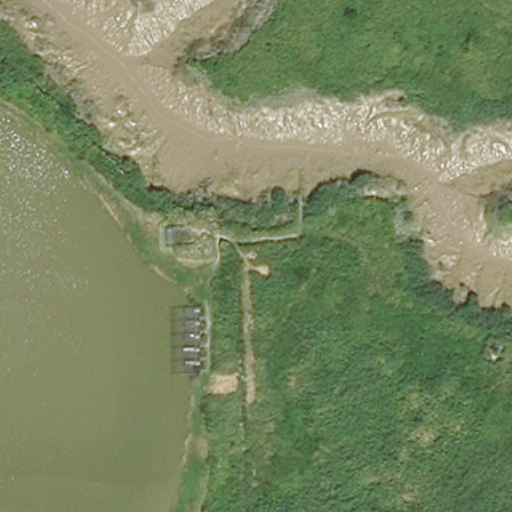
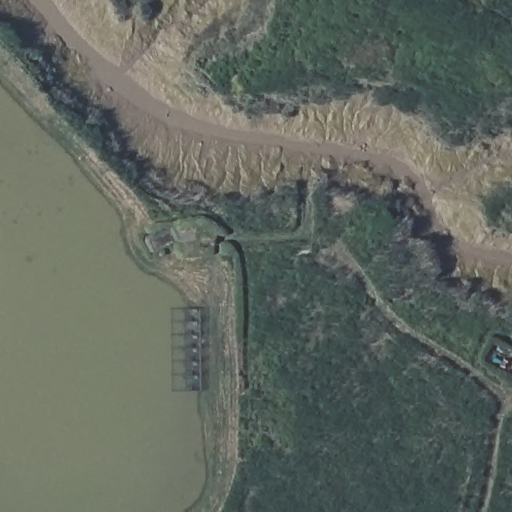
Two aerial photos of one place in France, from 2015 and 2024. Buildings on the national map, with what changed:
unchanged [(215,227),(217,255),(200,258),(197,246),(172,251),(167,232),(215,227)]

